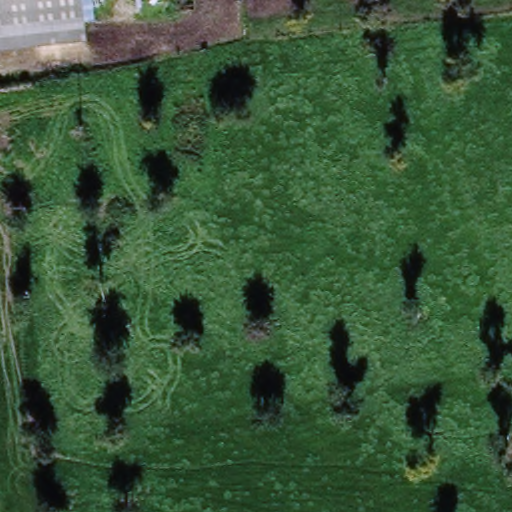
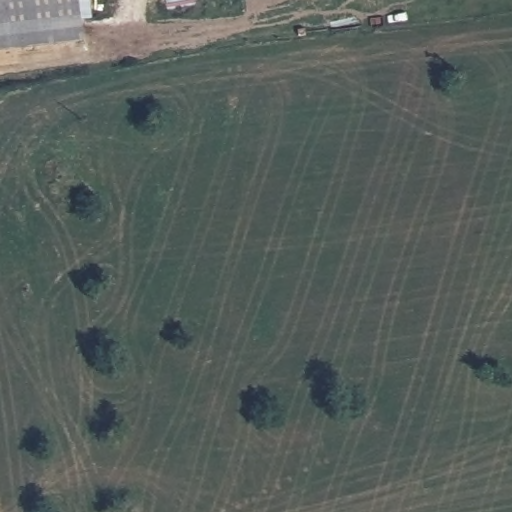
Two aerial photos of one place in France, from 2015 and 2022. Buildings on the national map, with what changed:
unchanged [(0,49),(0,0),(82,0),(87,38),(0,49)]

